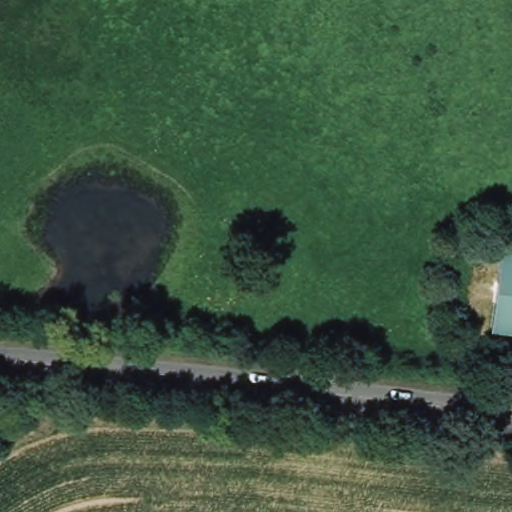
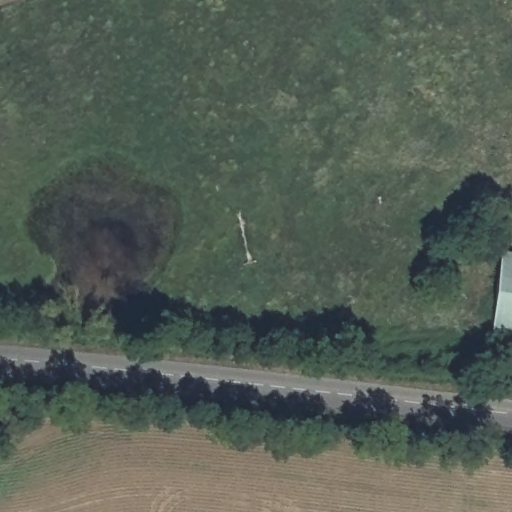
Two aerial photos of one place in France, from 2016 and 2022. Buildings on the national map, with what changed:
unchanged [(512,330),(492,328),(501,251),(512,252),(512,330)]

